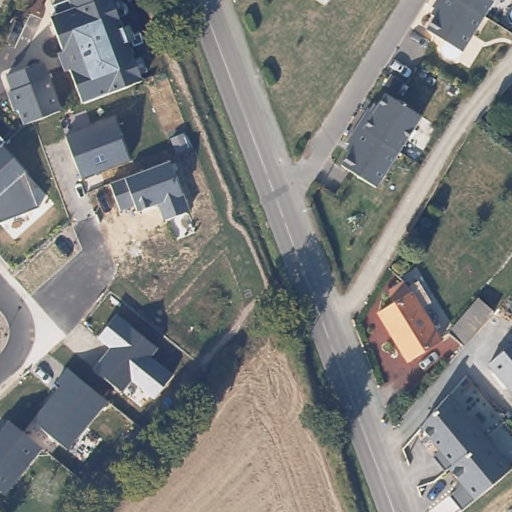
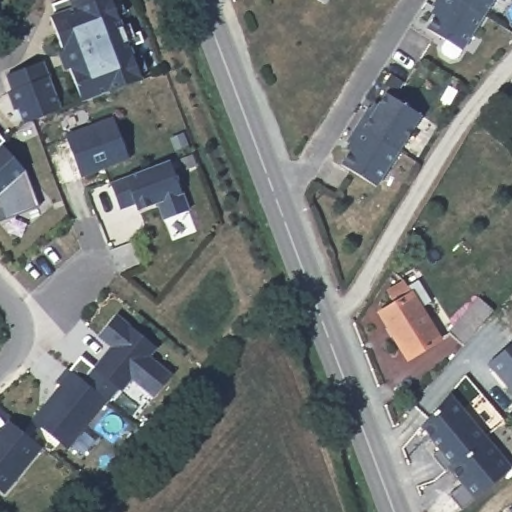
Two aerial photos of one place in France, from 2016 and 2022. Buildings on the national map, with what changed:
unchanged [(75,7),(72,0),(114,0),(144,79),(82,100),(72,68),(65,70),(58,50),(62,48),(50,16),(75,7)]
unchanged [(327,4),(321,0),(331,0),(327,4)]
unchanged [(480,8),(483,10),(461,46),(460,45),(455,52),(450,54),(442,49),(441,44),(446,36),(426,24),(437,5),(432,2),(433,0),(466,0),(480,8)]
unchanged [(483,10),(480,8),(466,0),(490,0),(483,10)]
unchanged [(61,110),(25,122),(20,110),(15,111),(9,93),(15,91),(8,76),(44,61),(61,110)]
unchanged [(367,104),(373,108),(385,89),(420,111),(397,147),(357,121),(367,104)]
unchanged [(129,158),(81,178),(66,135),(114,117),(129,158)]
unchanged [(397,147),(375,182),(340,161),(352,142),(346,138),(357,121),(397,147)]
unchanged [(1,145),(27,173),(37,207),(0,223),(0,136),(5,142),(1,145)]
unchanged [(170,161),(190,211),(164,219),(157,202),(137,210),(135,205),(121,209),(111,184),(170,161)]
unchanged [(419,285),(433,309),(421,316),(437,345),(407,362),(381,317),(395,309),(387,294),(403,284),(407,292),(419,285)]
unchanged [(491,311),(462,346),(446,332),(475,297),(491,311)]
unchanged [(111,347),(99,336),(117,314),(158,348),(151,357),(174,375),(155,398),(132,380),(121,393),(94,368),(111,347)]
unchanged [(488,365),(512,345),(512,393),(488,365)]
unchanged [(57,381),(67,368),(107,402),(69,448),(32,420),(61,385),(57,381)]
unchanged [(512,465),(512,467),(462,509),(449,494),(463,482),(450,467),(444,471),(434,458),(440,453),(415,422),(450,392),(512,465)]
unchanged [(4,494),(0,491),(0,431),(7,422),(42,449),(4,494)]

